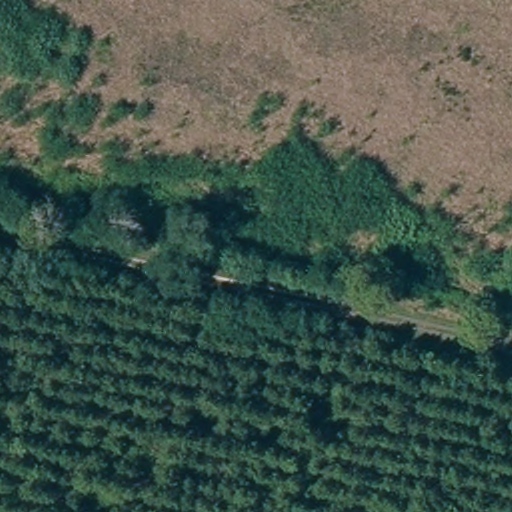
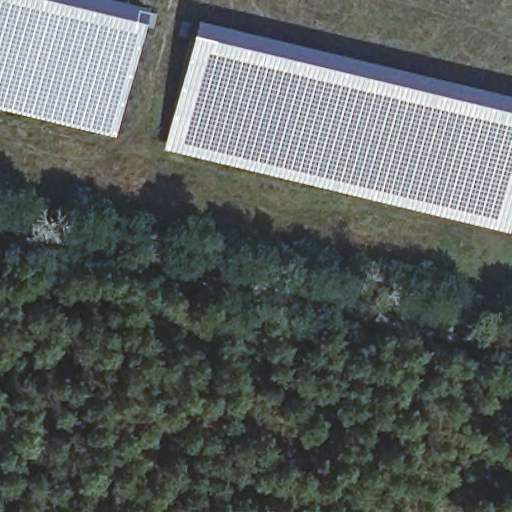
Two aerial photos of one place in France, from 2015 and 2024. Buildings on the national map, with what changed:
new [(115,139),(0,110),(0,0),(108,0),(145,9),(115,139)]
new [(507,233),(162,148),(192,21),(512,98),(512,212),(507,233)]

